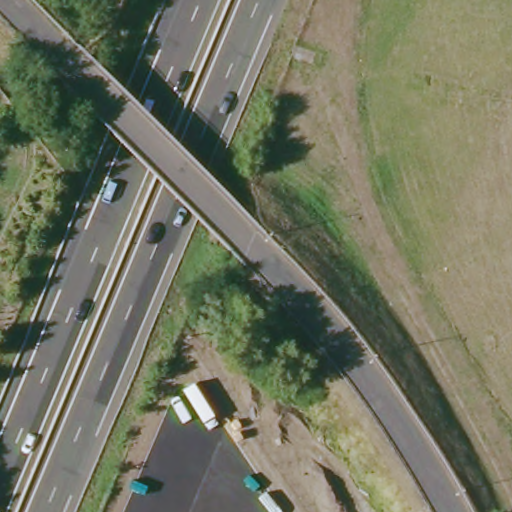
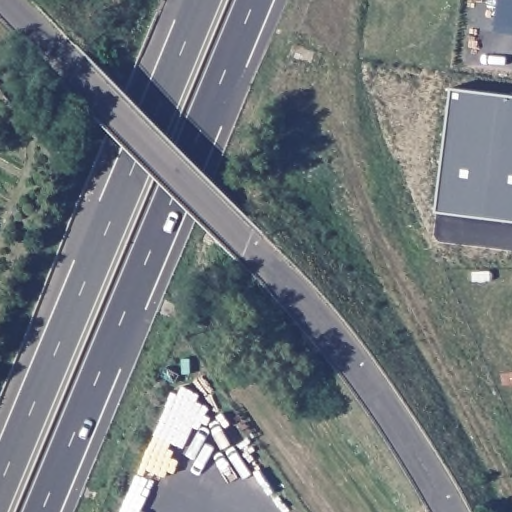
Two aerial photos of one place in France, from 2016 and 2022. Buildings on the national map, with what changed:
new [(512,0),(512,37),(496,35),(500,0),(512,0)]
new [(512,97),(512,223),(436,213),(452,89),(512,97)]

